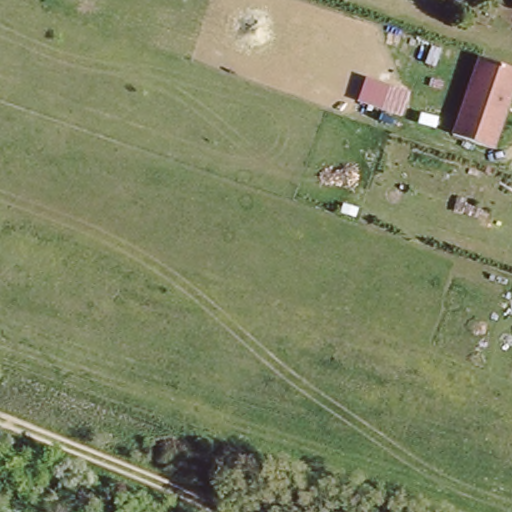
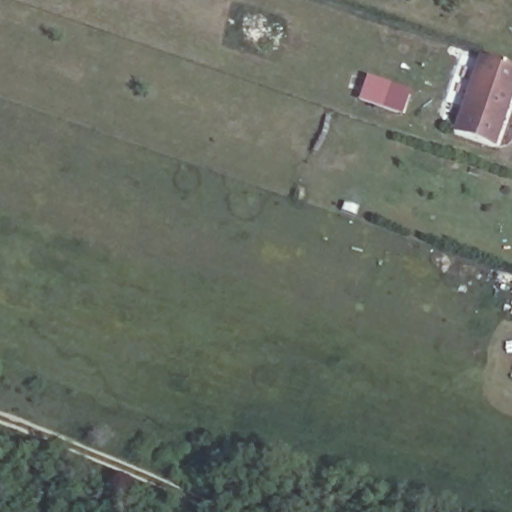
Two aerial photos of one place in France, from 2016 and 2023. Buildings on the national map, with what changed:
unchanged [(512,72),(512,101),(498,147),(451,130),(475,59),(512,72)]
unchanged [(365,76),(412,92),(403,117),(357,102),(365,76)]

